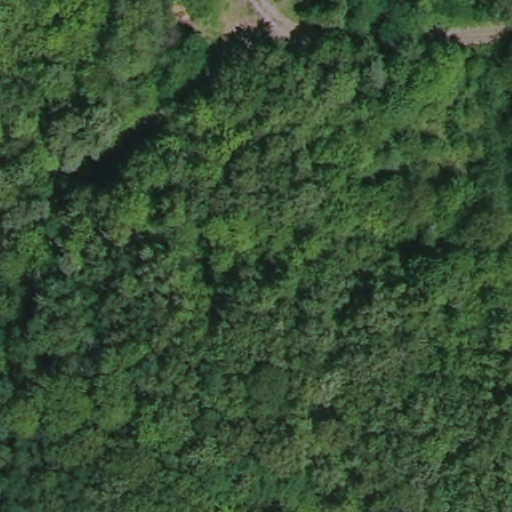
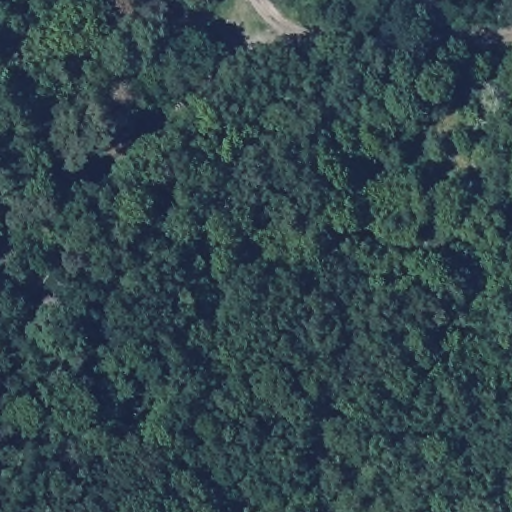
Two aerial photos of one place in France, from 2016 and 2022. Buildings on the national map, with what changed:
[]

